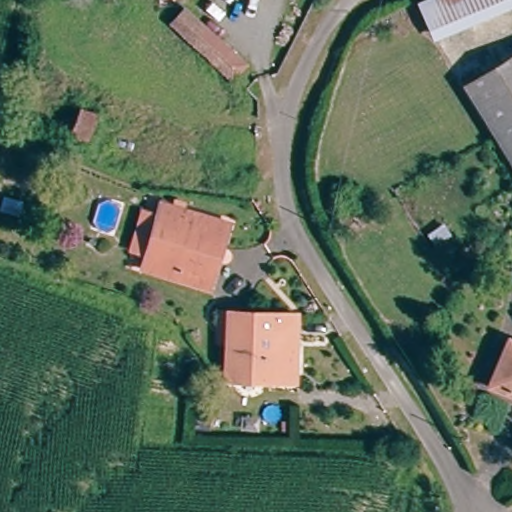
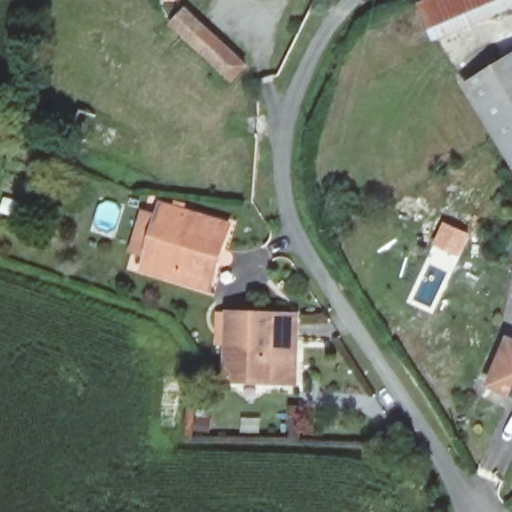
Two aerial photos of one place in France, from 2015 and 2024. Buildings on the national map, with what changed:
unchanged [(422,10),(446,0),(512,0),(512,5),(508,7),(434,38),(422,10)]
unchanged [(240,82),(194,45),(171,26),(186,8),(210,27),(255,65),(240,82)]
unchanged [(466,85),(512,56),(512,163),(466,85)]
unchanged [(163,201),(227,223),(207,288),(144,269),(163,201)]
unchanged [(229,331),(219,329),(218,315),(260,316),(259,348),(231,349),(229,331)]
unchanged [(231,349),(259,348),(260,316),(299,316),(301,379),(230,379),(231,349)]
unchanged [(510,394),(490,385),(502,359),(511,363),(512,361),(512,390),(510,394)]

